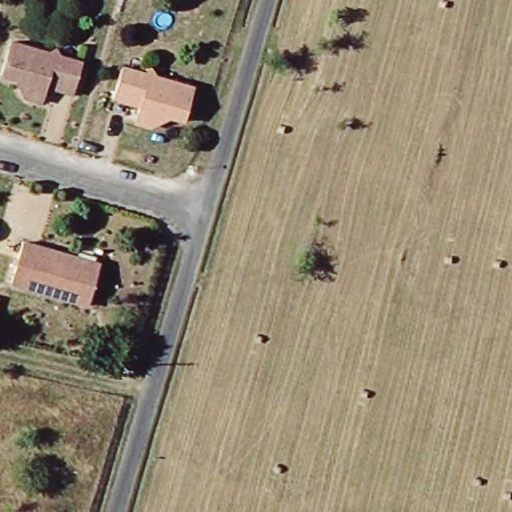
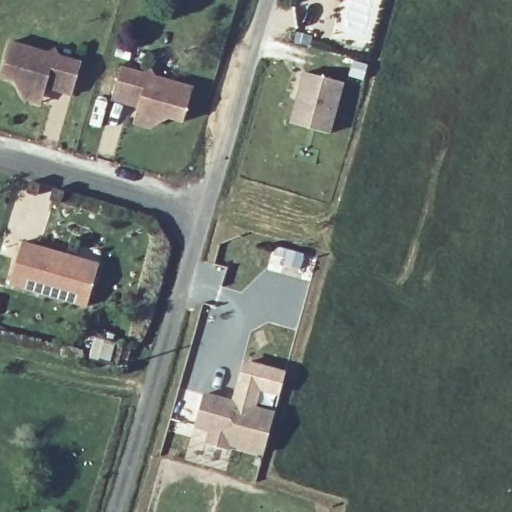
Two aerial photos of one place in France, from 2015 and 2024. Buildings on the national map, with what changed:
unchanged [(16,94),(11,87),(13,84),(0,80),(0,70),(8,44),(44,54),(51,50),(55,57),(76,62),(69,90),(42,83),(39,94),(22,91),(16,94)]
unchanged [(133,112),(136,103),(110,95),(119,67),(140,74),(147,68),(154,77),(189,87),(180,121),(163,116),(151,123),(148,117),(133,112)]
new [(306,69),(345,80),(331,130),(293,120),(306,69)]
unchanged [(6,286),(19,243),(60,255),(94,265),(92,271),(81,308),(6,286)]
unchanged [(126,355),(129,342),(136,345),(133,357),(126,355)]
new [(208,392),(279,412),(268,452),(233,442),(231,448),(211,442),(215,428),(199,424),(208,392)]

